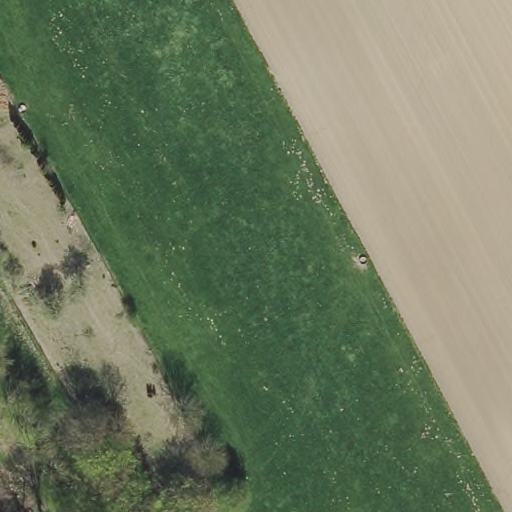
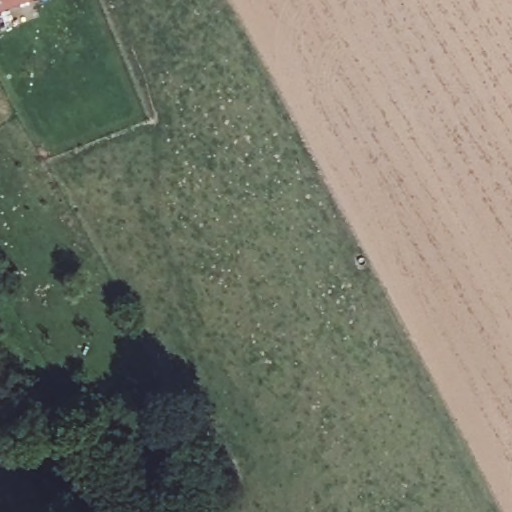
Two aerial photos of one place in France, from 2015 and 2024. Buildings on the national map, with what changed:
new [(29,0),(0,10),(0,0),(29,0)]

